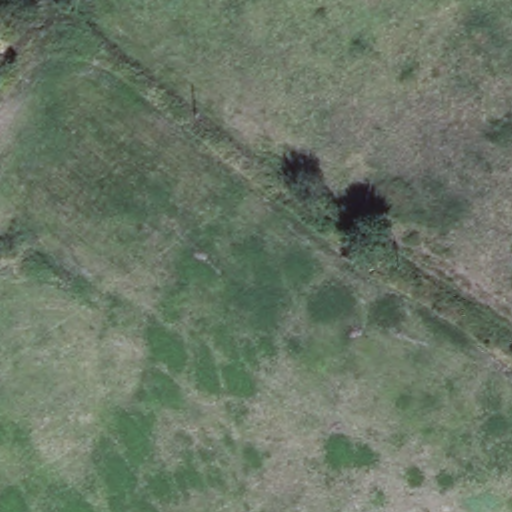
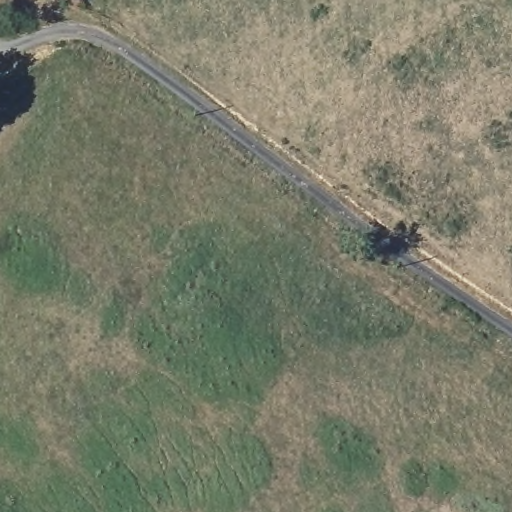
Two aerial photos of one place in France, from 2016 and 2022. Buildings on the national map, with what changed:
[]

